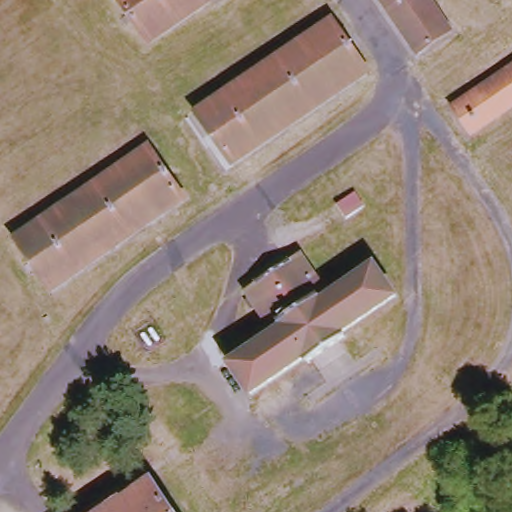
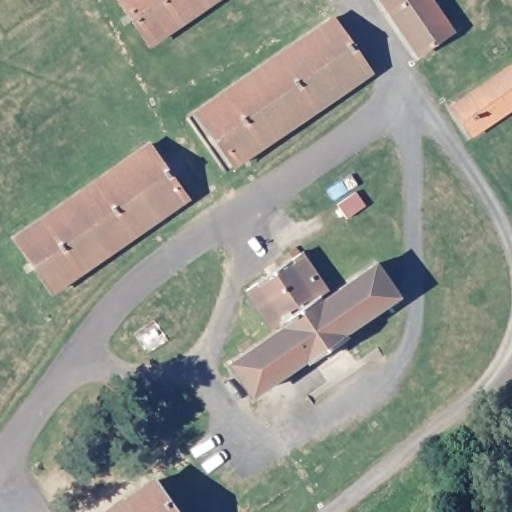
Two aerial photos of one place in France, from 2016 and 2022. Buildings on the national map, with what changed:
unchanged [(111,0),(212,0),(148,43),(111,0)]
unchanged [(375,0),(430,0),(451,28),(415,55),(375,0)]
unchanged [(187,112),(331,14),(369,72),(227,166),(187,112)]
unchanged [(512,59),(512,107),(470,137),(445,103),(512,59)]
unchanged [(9,236),(145,143),(185,201),(49,293),(9,236)]
unchanged [(223,359),(265,330),(240,289),(297,251),(324,292),(369,261),(393,292),(341,331),(342,335),(302,364),(300,359),(250,396),(223,359)]
unchanged [(174,512),(95,512),(149,474),(174,512)]

